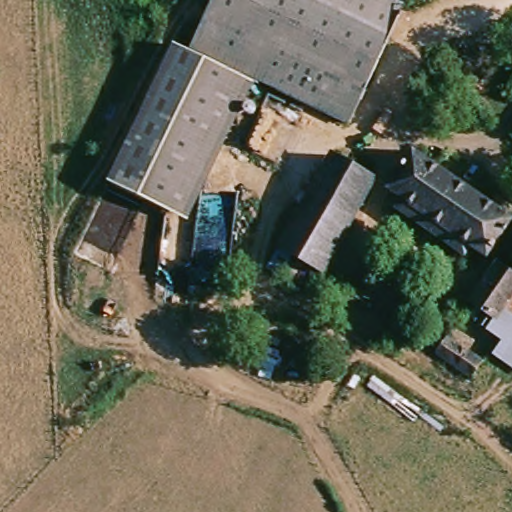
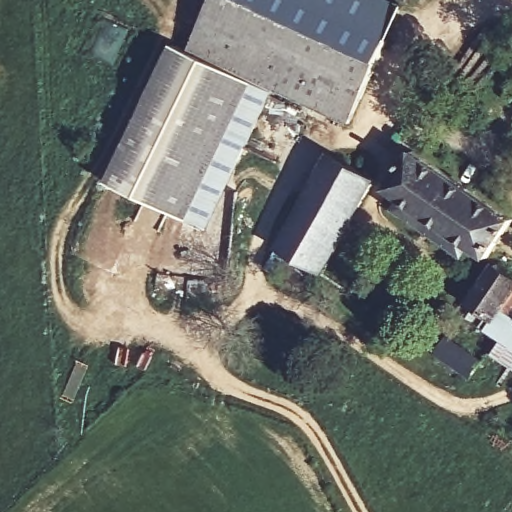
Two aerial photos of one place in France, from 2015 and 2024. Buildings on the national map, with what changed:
unchanged [(255,108),(255,114),(252,117),(247,116),(242,114),(190,214),(166,200),(107,169),(177,31),(194,39),(212,0),(380,0),(405,12),(346,122),(261,77),(247,105),(252,105),(255,108)]
unchanged [(465,243),(460,250),(396,206),(400,199),(385,189),(411,150),(512,218),(486,257),(465,243)]
unchanged [(375,184),(319,272),(279,247),(335,158),(375,184)]
unchanged [(462,312),(496,265),(512,276),(512,322),(499,339),(462,312)]
unchanged [(512,322),(512,369),(490,353),(499,339),(512,322)]

